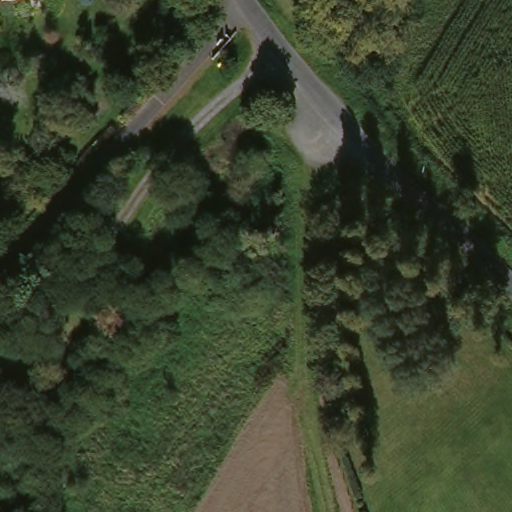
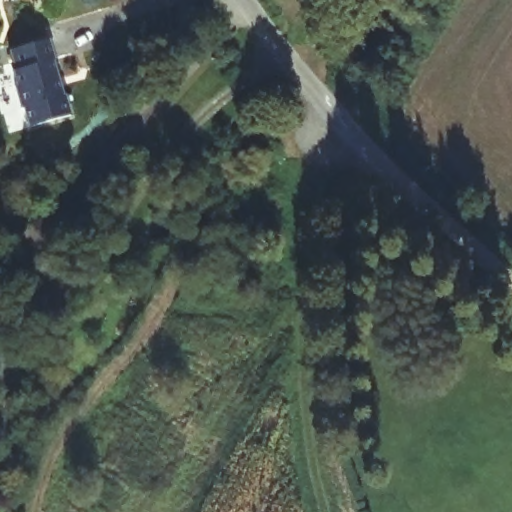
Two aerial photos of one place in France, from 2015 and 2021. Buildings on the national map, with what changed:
new [(51,39),(56,60),(54,60),(62,95),(63,95),(69,115),(28,125),(24,105),(22,106),(16,82),(19,81),(15,69),(18,67),(13,47),(51,39)]

